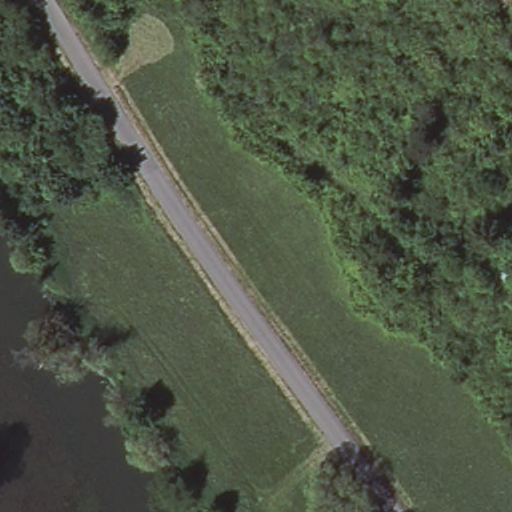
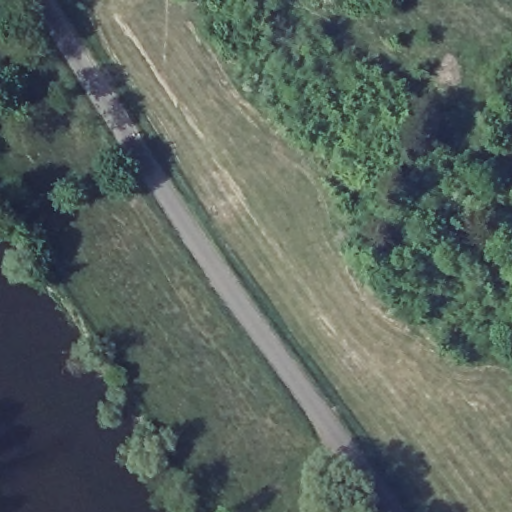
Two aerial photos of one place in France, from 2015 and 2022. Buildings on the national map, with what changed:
unchanged [(441,256),(437,261),(426,253),(421,260),(417,256),(410,265),(392,251),(407,231),(441,256)]

